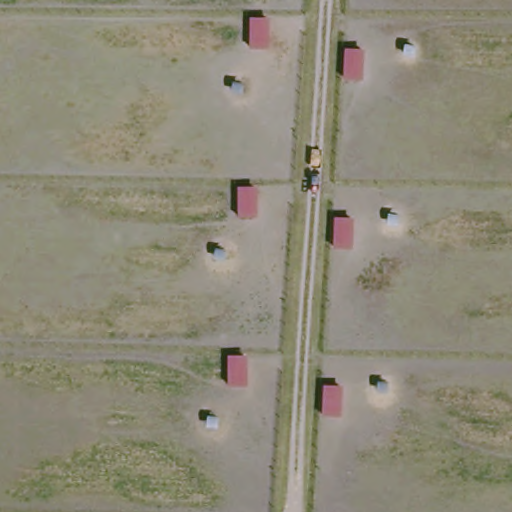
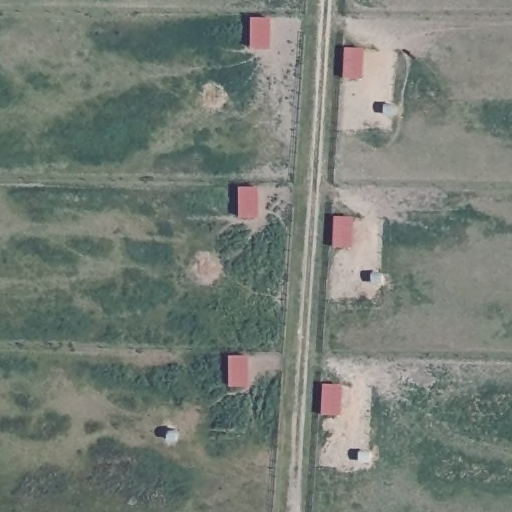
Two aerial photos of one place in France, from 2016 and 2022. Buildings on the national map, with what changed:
unchanged [(272,17),(270,49),(250,48),(252,17),(272,17)]
unchanged [(367,48),(365,80),(345,79),(347,47),(367,48)]
unchanged [(259,185),(259,217),(239,217),(238,185),(259,185)]
unchanged [(355,217),(353,249),(333,247),(335,217),(355,217)]
unchanged [(248,354),(249,385),(230,386),(229,354),(248,354)]
unchanged [(343,384),(343,416),(323,416),(323,384),(343,384)]

